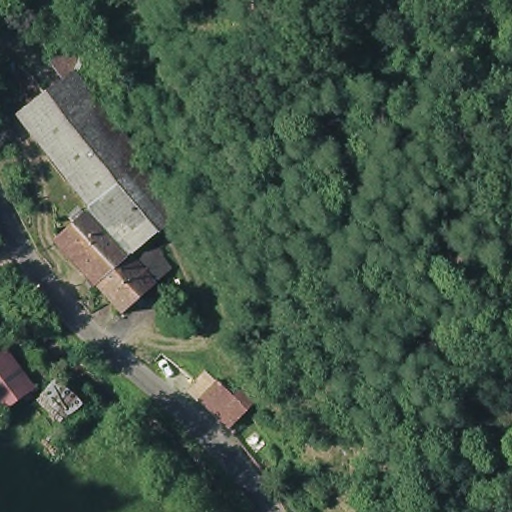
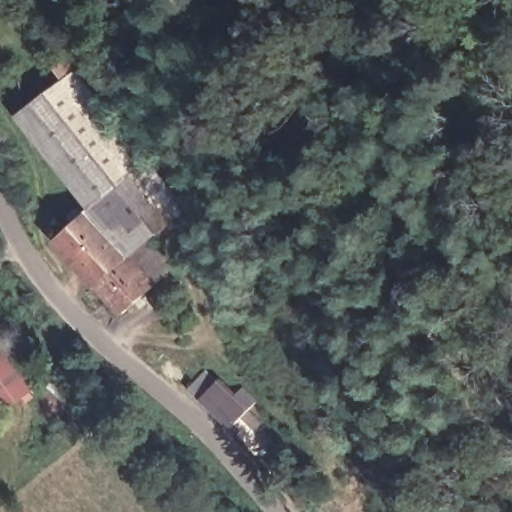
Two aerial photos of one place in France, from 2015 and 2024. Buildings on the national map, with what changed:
unchanged [(55,243),(88,212),(86,211),(13,119),(73,74),(143,164),(183,214),(154,239),(151,235),(146,240),(162,258),(171,272),(156,285),(121,313),(88,279),(55,243)]
unchanged [(0,417),(0,336),(36,391),(0,417)]
unchanged [(243,402),(246,398),(251,395),(264,408),(262,411),(256,416),(238,433),(212,406),(205,398),(202,396),(217,380),(219,382),(228,391),(230,388),(243,402)]

